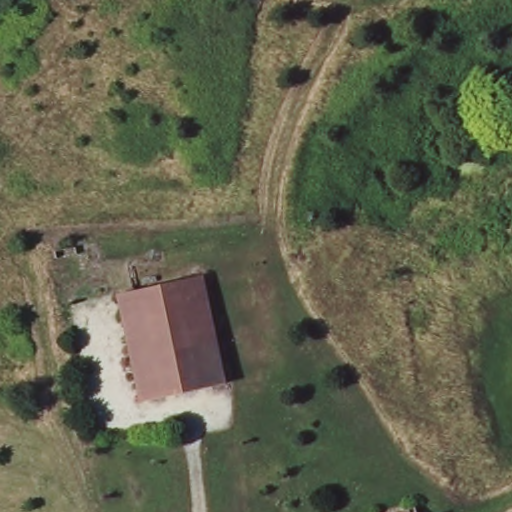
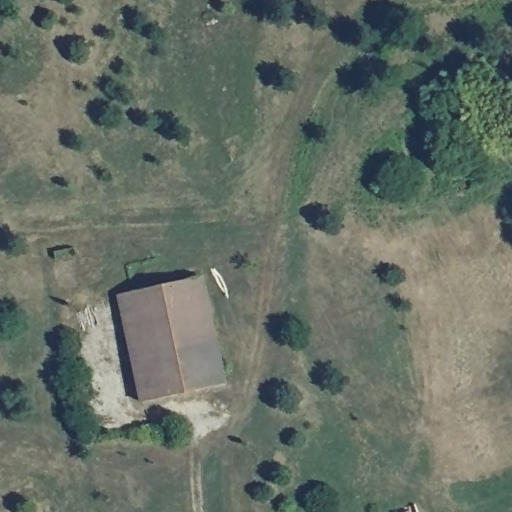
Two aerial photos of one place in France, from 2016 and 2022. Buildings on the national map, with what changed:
unchanged [(203,276),(224,383),(140,398),(119,291),(134,288),(194,278),(203,276)]

